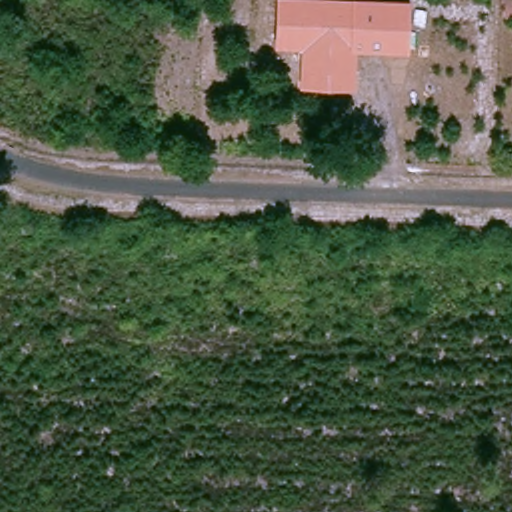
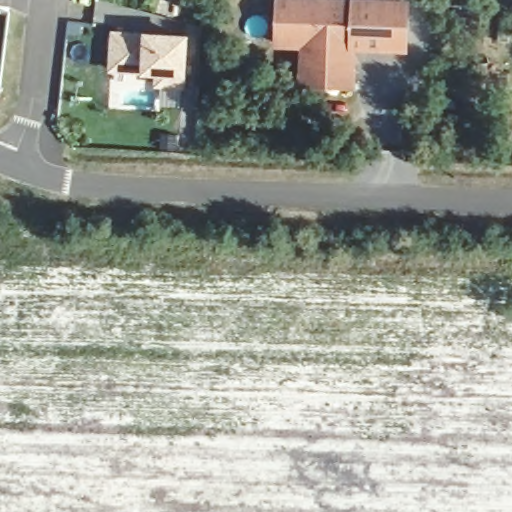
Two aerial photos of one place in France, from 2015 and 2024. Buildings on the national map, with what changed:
unchanged [(407,53),(356,51),(354,91),(299,89),(301,50),(274,48),(276,0),(410,0),(407,53)]
new [(111,31),(188,36),(184,89),(154,87),(153,75),(107,71),(111,31)]

